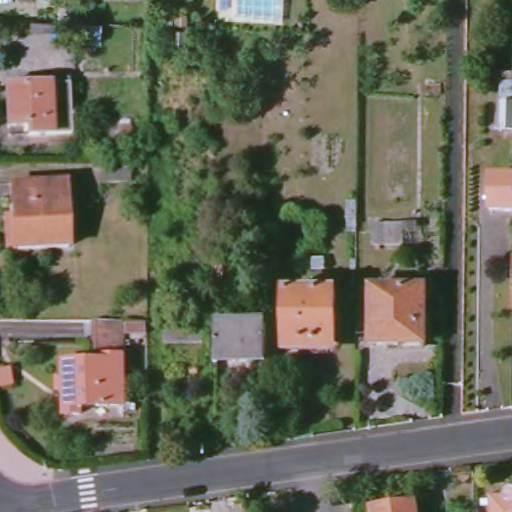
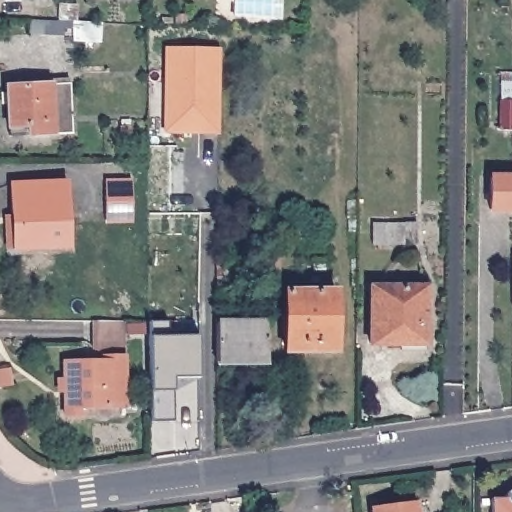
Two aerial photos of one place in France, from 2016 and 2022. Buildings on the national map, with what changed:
new [(148,80),(164,80),(164,46),(217,46),(217,130),(190,130),(190,145),(148,145),(148,80)]
unchanged [(512,130),(502,130),(502,73),(512,73),(512,130)]
unchanged [(30,126),(10,128),(8,86),(72,83),(74,133),(30,136),(30,126)]
unchanged [(512,176),(512,211),(492,210),(492,176),(512,176)]
new [(107,213),(107,193),(107,178),(132,178),(132,193),(132,213),(107,213)]
unchanged [(19,197),(14,197),(14,184),(65,182),(70,247),(22,249),(19,197)]
unchanged [(404,222),(402,244),(374,244),(374,223),(404,222)]
unchanged [(372,340),(372,284),(427,284),(427,314),(419,314),(418,333),(411,333),(410,342),(372,340)]
unchanged [(287,348),(286,295),(337,295),(339,348),(287,348)]
unchanged [(118,320),(119,406),(77,408),(77,414),(62,414),(60,363),(92,361),(92,320),(118,320)]
unchanged [(218,322),(267,321),(268,359),(217,360),(218,322)]
unchanged [(122,324),(140,322),(142,334),(123,336),(122,324)]
new [(169,338),(196,337),(196,377),(171,392),(172,421),(151,421),(150,390),(149,337),(149,322),(167,322),(169,338)]
demolished [(167,325),(205,325),(205,343),(167,344),(167,325)]
unchanged [(510,496),(511,494),(512,492),(512,512),(497,512),(497,496),(510,496)]
unchanged [(374,508),(417,502),(418,512),(374,512),(374,508)]

